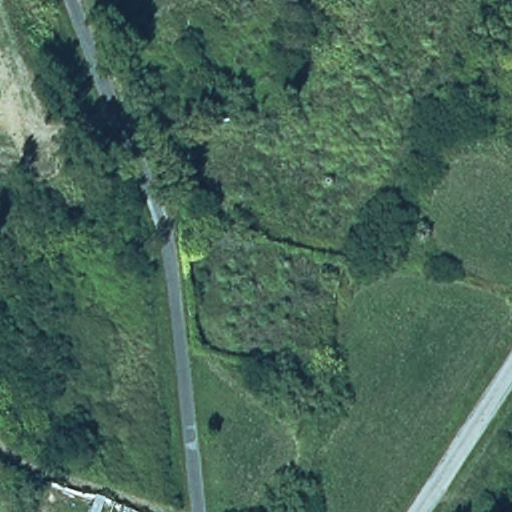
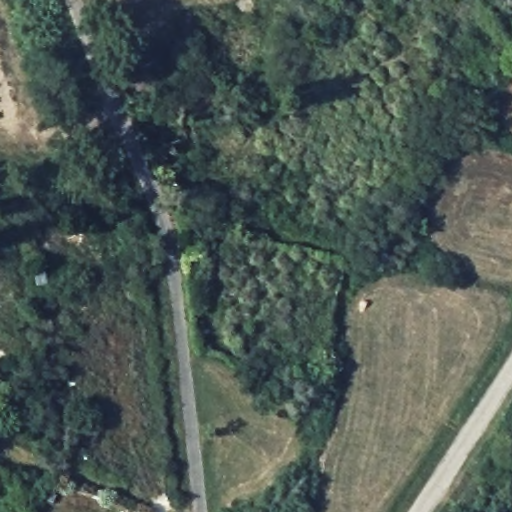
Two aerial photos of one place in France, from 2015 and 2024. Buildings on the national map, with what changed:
[]

